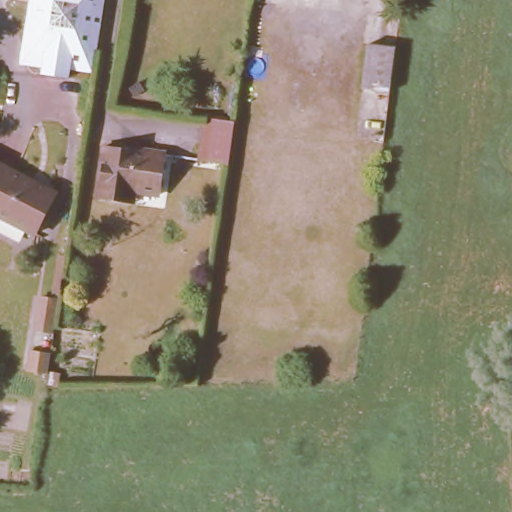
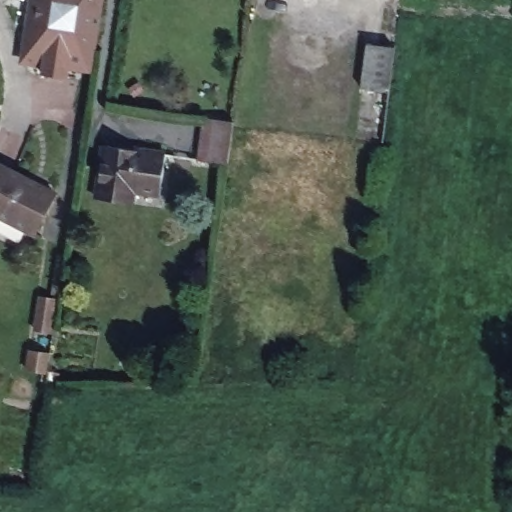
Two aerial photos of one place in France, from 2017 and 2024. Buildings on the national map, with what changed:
unchanged [(72,63),(70,77),(45,73),(46,61),(27,59),(26,50),(34,0),(105,0),(95,67),(72,63)]
unchanged [(369,47),(396,51),(390,96),(363,92),(369,47)]
unchanged [(203,119),(234,124),(229,162),(199,159),(203,119)]
unchanged [(162,155),(158,195),(131,191),(130,204),(96,200),(102,147),(162,155)]
unchanged [(53,187),(32,226),(0,210),(0,160),(53,187)]

